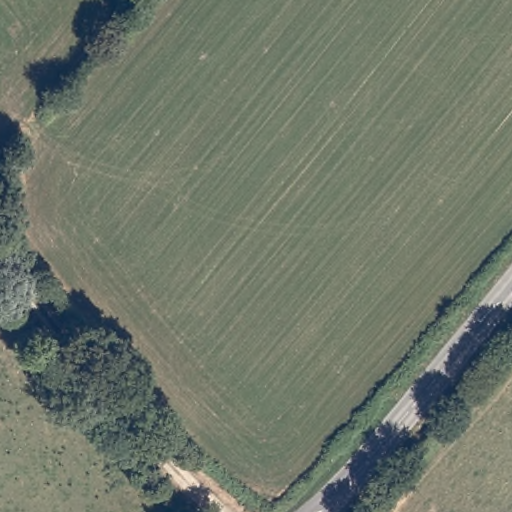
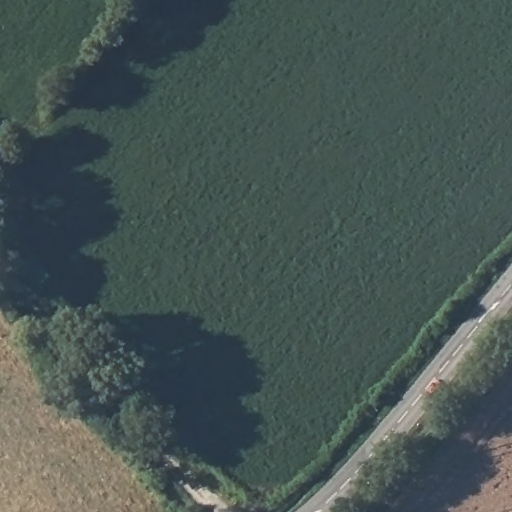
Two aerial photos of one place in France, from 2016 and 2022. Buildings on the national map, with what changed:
unchanged [(421,347),(432,331),(447,342),(436,358),(421,347)]

